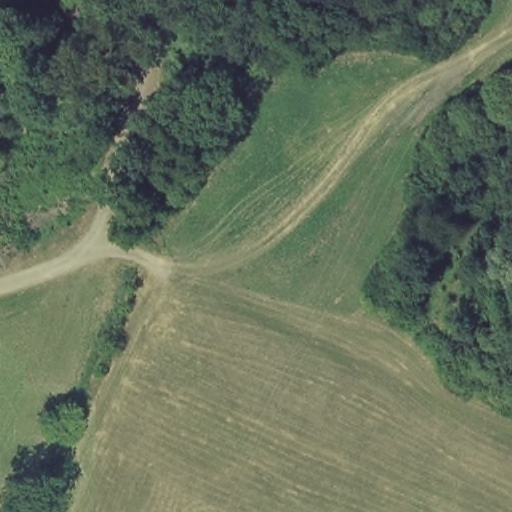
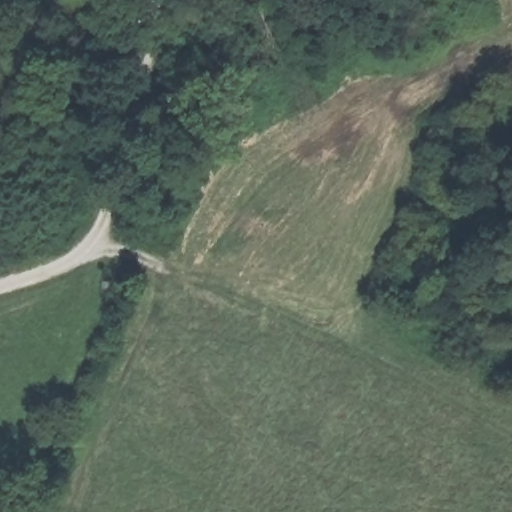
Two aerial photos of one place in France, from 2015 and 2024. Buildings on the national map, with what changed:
[]

